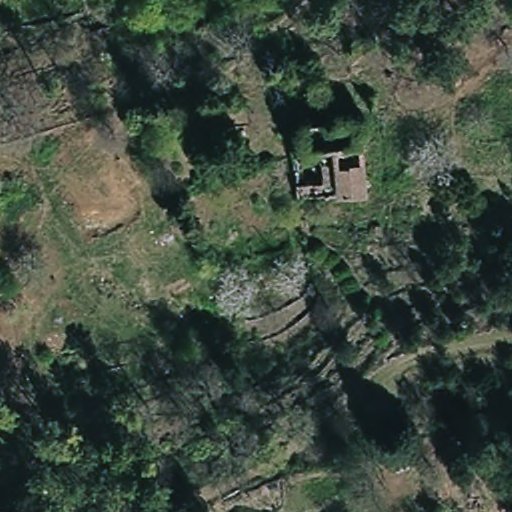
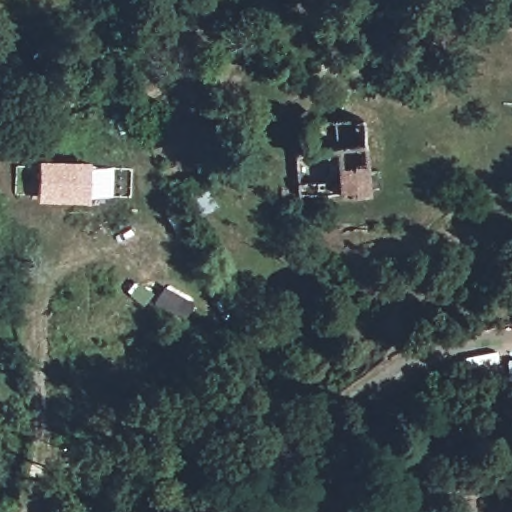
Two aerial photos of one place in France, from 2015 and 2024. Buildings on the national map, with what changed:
unchanged [(296,188),(341,186),(338,150),(367,147),(368,200),(341,202),(296,204),(296,188)]
new [(88,201),(38,201),(38,160),(88,160),(88,201)]

